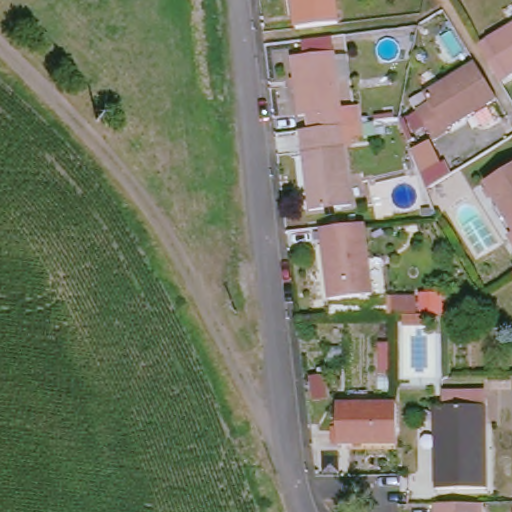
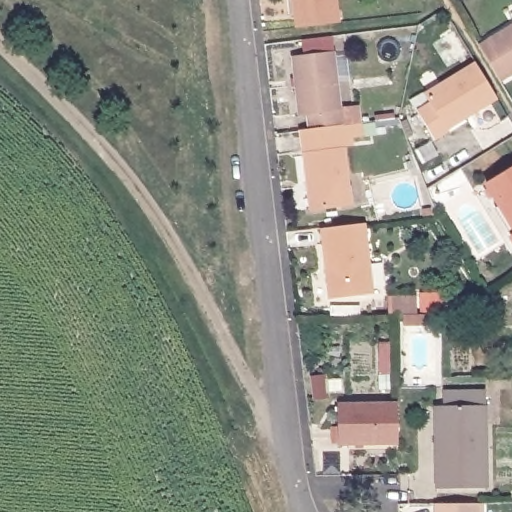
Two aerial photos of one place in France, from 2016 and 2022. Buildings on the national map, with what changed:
unchanged [(297,28),(293,0),(337,0),(340,23),(297,28)]
unchanged [(512,76),(510,77),(500,82),(478,45),(487,39),(512,24),(512,76)]
unchanged [(307,115),(298,116),(292,56),(335,51),(342,107),(358,106),(360,124),(308,130),(307,115)]
unchanged [(503,100),(452,130),(454,133),(441,141),(418,103),(430,95),(430,92),(480,62),(503,100)]
unchanged [(310,211),(300,131),(308,130),(360,124),(361,124),(363,137),(353,139),(354,145),(345,146),(352,206),(310,211)]
unchanged [(435,141),(446,163),(427,171),(418,149),(435,141)]
unchanged [(512,226),(486,184),(512,169),(512,226)]
unchanged [(363,224),(372,294),(330,299),(322,229),(363,224)]
unchanged [(417,315),(397,315),(388,315),(388,296),(417,296),(417,315)]
unchanged [(325,380),(325,393),(312,393),(312,380),(325,380)]
unchanged [(487,487),(437,488),(436,465),(436,407),(443,407),(444,394),(471,393),(486,393),(487,487)]
unchanged [(399,443),(338,445),(338,405),(398,403),(399,443)]
unchanged [(490,512),(440,512),(440,508),(483,508),(490,508),(490,512)]

